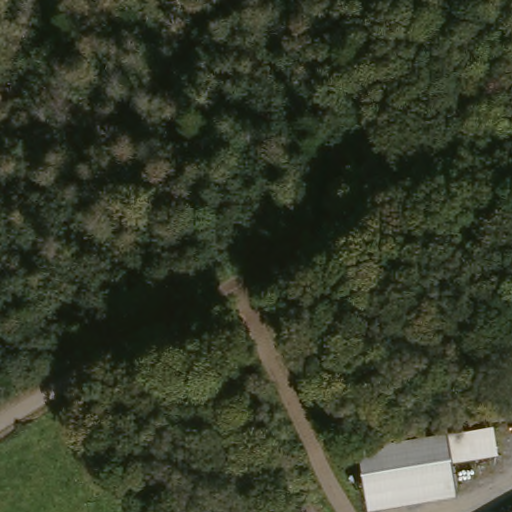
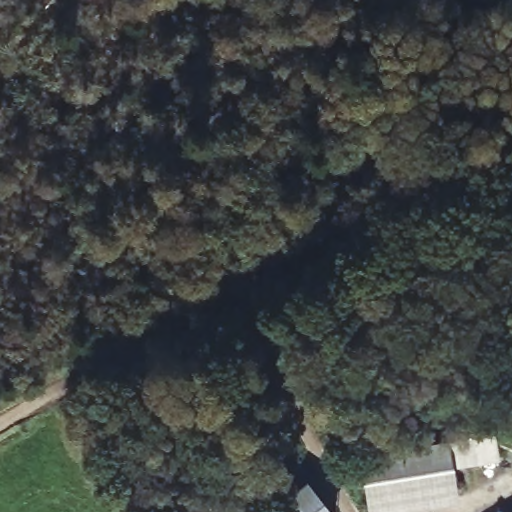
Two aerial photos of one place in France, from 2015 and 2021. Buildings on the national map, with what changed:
unchanged [(498,460),(452,468),(457,502),(396,512),(368,512),(359,453),(494,432),(498,460)]

